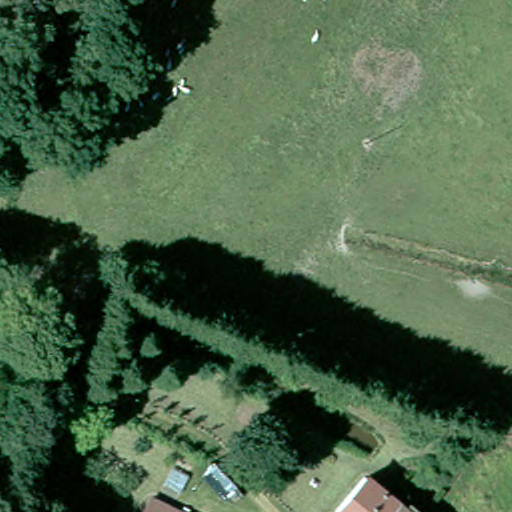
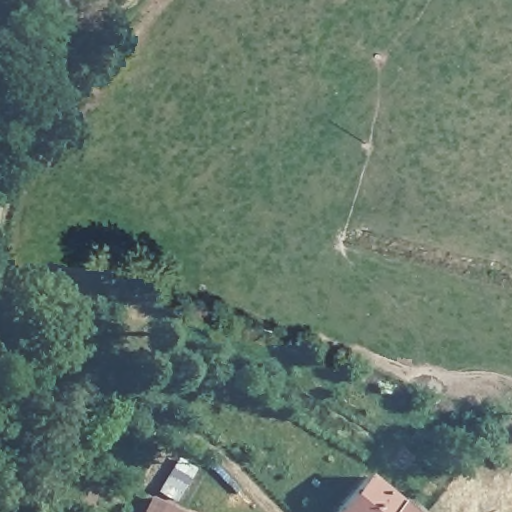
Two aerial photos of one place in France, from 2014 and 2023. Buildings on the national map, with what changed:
unchanged [(331,512),(369,470),(403,497),(390,512),(331,512)]
unchanged [(419,512),(390,512),(403,497),(419,512)]
unchanged [(172,512),(144,512),(151,500),(172,512)]

